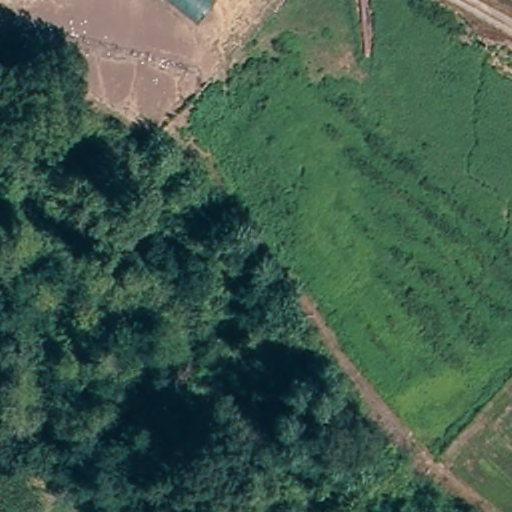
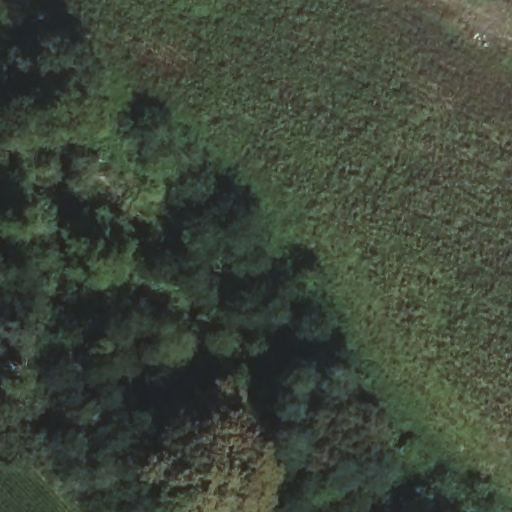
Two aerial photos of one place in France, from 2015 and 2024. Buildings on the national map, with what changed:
demolished [(169,0),(208,0),(214,6),(197,24),(169,0)]

